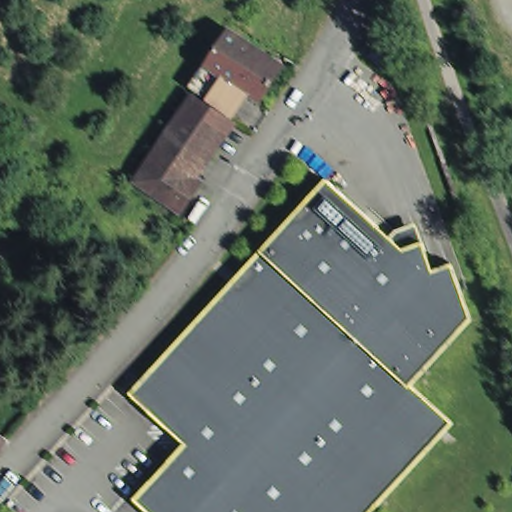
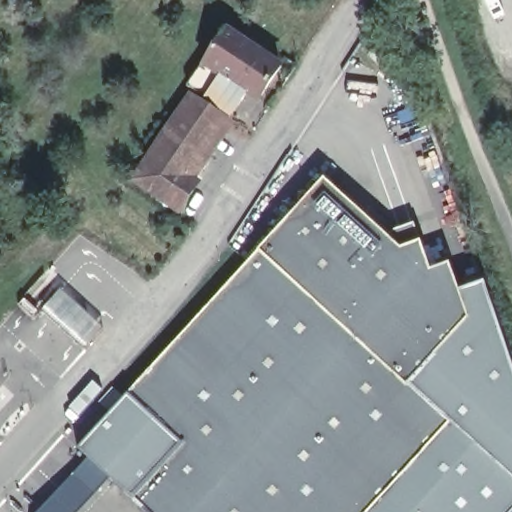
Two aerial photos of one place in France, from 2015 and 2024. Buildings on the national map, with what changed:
demolished [(378,0),(377,17),(382,30),(369,27),(362,24),(364,14),(356,11),(363,0),(378,0)]
unchanged [(204,63),(225,29),(281,65),(259,99),(204,63)]
unchanged [(192,219),(180,210),(135,180),(192,96),(229,119),(191,177),(199,182),(212,189),(192,219)]
unchanged [(130,498),(183,441),(129,391),(325,175),(388,234),(415,222),(430,269),(449,263),(467,314),(407,380),(450,421),(367,512),(147,512),(130,498)]
new [(485,283),(512,360),(512,512),(367,512),(450,421),(407,380),(467,314),(459,292),(485,283)]
new [(62,294),(105,332),(85,353),(44,315),(62,294)]
new [(183,441),(130,498),(110,478),(79,512),(39,512),(89,458),(79,449),(129,391),(183,441)]
demolished [(0,445),(0,434),(5,439),(0,445)]

